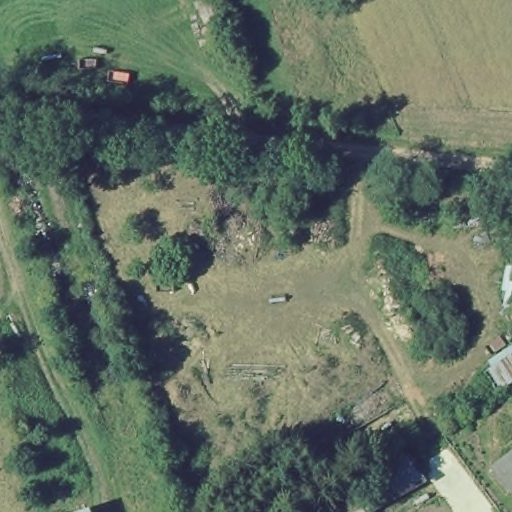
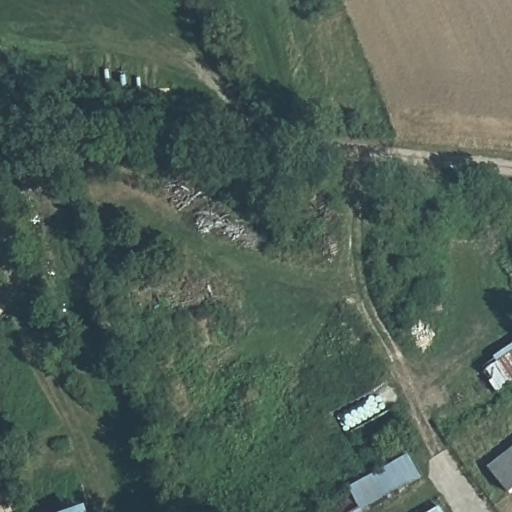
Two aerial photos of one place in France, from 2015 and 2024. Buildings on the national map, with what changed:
unchanged [(481,365),(512,346),(512,385),(498,393),(481,365)]
unchanged [(428,482),(372,512),(369,512),(352,483),(413,453),(428,482)]
unchanged [(491,470),(512,453),(512,493),(509,495),(491,470)]
unchanged [(78,512),(89,508),(91,512),(78,512)]

